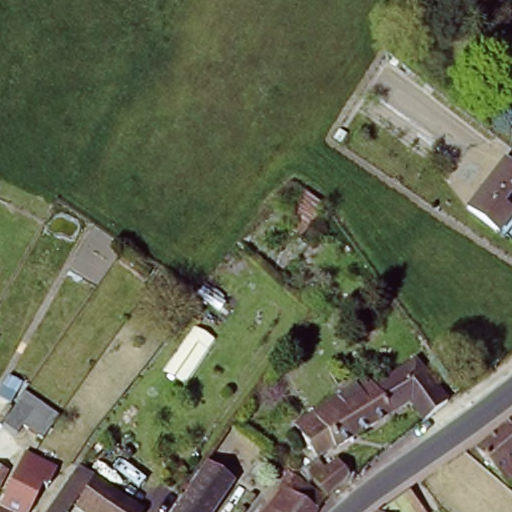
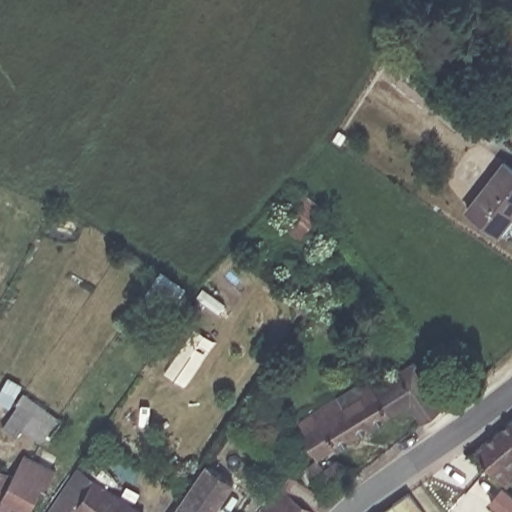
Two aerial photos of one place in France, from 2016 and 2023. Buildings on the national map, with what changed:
unchanged [(500,161),(512,170),(512,212),(497,234),(465,211),(500,161)]
unchanged [(430,426),(425,420),(406,398),(333,450),(328,443),(313,455),(300,434),(306,430),(300,421),(365,378),(368,381),(375,377),(380,383),(412,362),(445,405),(451,413),(430,426)]
unchanged [(19,385),(7,404),(0,400),(0,381),(3,375),(19,385)]
unchanged [(57,417),(40,440),(20,425),(13,432),(0,422),(22,391),(57,417)]
unchanged [(512,413),(512,481),(505,487),(469,450),(512,413)]
unchanged [(25,455),(60,475),(47,495),(41,491),(32,507),(29,512),(23,512),(3,494),(25,455)]
unchanged [(336,460),(351,478),(330,495),(315,477),(336,460)]
unchanged [(0,484),(0,465),(8,470),(0,484)]
unchanged [(207,465),(233,483),(213,512),(172,512),(207,465)]
unchanged [(264,491),(270,495),(281,480),(291,467),(295,470),(328,497),(320,508),(316,512),(249,512),(264,491)]
unchanged [(138,512),(51,512),(79,473),(138,512)]
unchanged [(417,485),(427,497),(430,494),(440,507),(434,512),(394,512),(388,505),(417,485)]
new [(505,487),(512,493),(512,512),(498,512),(490,505),(505,487)]

